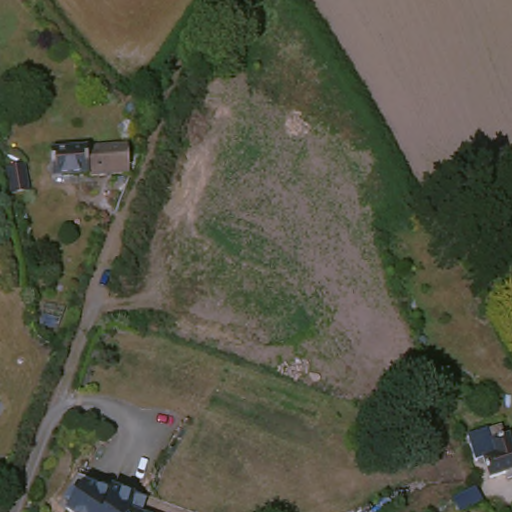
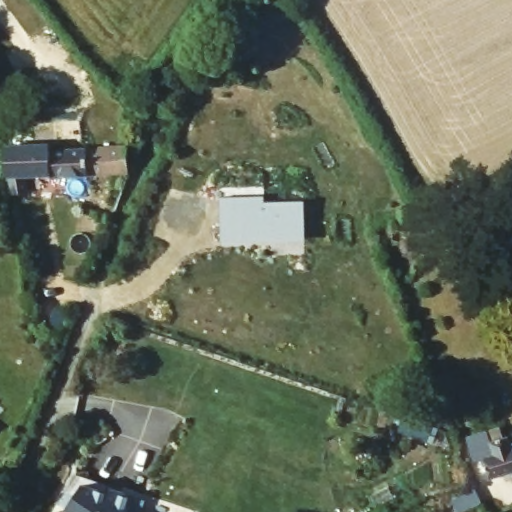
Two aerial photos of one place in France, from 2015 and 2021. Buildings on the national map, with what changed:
unchanged [(122,179),(53,181),(52,152),(121,149),(122,179)]
unchanged [(25,166),(29,192),(11,195),(7,169),(25,166)]
new [(312,245),(251,246),(229,246),(229,229),(228,204),(241,204),(273,203),(273,211),(311,210),(312,245)]
unchanged [(483,480),(478,462),(471,464),(466,447),(485,441),(482,431),(496,426),(499,436),(503,435),(505,443),(512,441),(512,471),(483,480)]
unchanged [(146,498),(142,512),(75,512),(68,507),(85,483),(112,492),(113,487),(146,498)]

